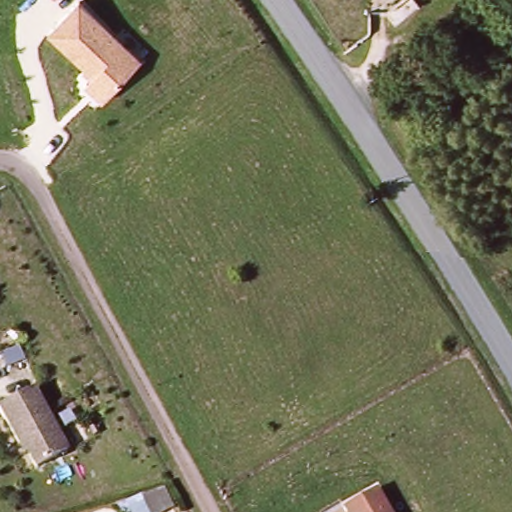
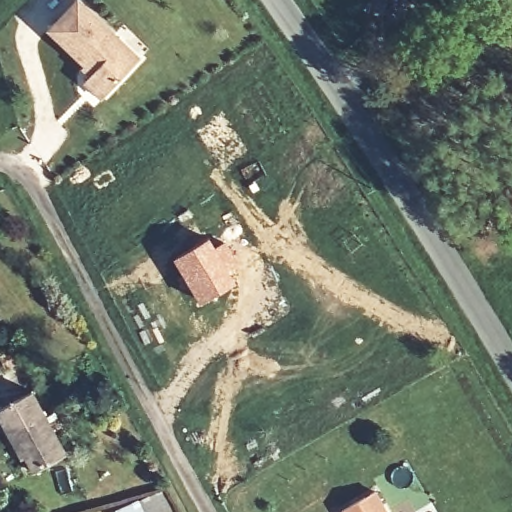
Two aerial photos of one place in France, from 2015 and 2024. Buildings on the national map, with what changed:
unchanged [(139,59),(99,101),(82,84),(88,76),(79,67),(81,64),(45,29),(75,0),(80,0),(139,59)]
new [(209,235),(215,246),(223,241),(237,264),(229,269),(237,281),(200,303),(172,257),(209,235)]
unchanged [(33,470),(20,448),(18,450),(0,418),(0,407),(30,390),(64,453),(33,470)]
unchanged [(173,508),(165,512),(115,512),(113,509),(161,486),(173,508)]
unchanged [(377,490),(389,512),(345,512),(343,508),(377,490)]

